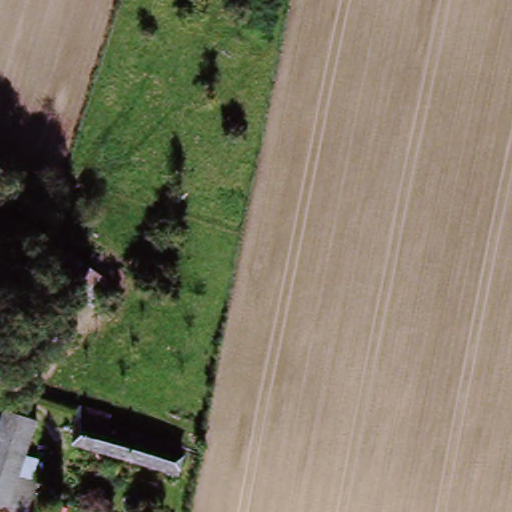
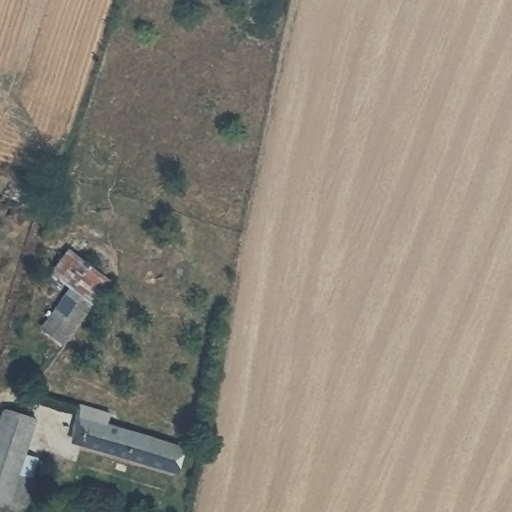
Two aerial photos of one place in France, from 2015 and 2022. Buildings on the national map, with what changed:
unchanged [(73,292),(66,283),(55,275),(74,254),(112,286),(93,307),(73,292)]
unchanged [(60,351),(39,334),(73,292),(93,307),(60,351)]
unchanged [(33,452),(25,477),(30,479),(28,485),(19,512),(0,512),(0,405),(1,404),(16,409),(30,414),(19,447),(33,452)]
unchanged [(178,478),(74,443),(84,413),(113,423),(112,429),(184,454),(178,478)]
unchanged [(43,512),(22,512),(29,492),(48,497),(43,512)]

